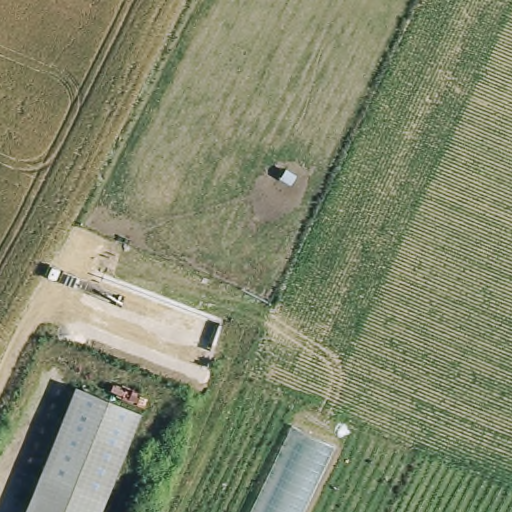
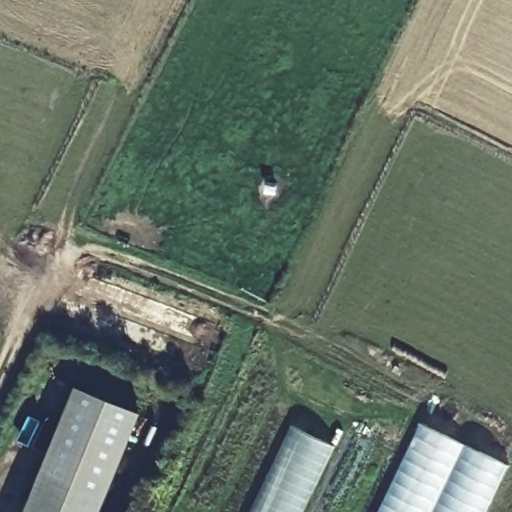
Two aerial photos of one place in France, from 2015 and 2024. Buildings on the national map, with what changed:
unchanged [(24,512),(75,384),(141,411),(101,512),(24,512)]
new [(485,512),(377,512),(418,424),(507,466),(485,512)]
unchanged [(333,447),(303,512),(250,512),(291,426),(333,447)]

